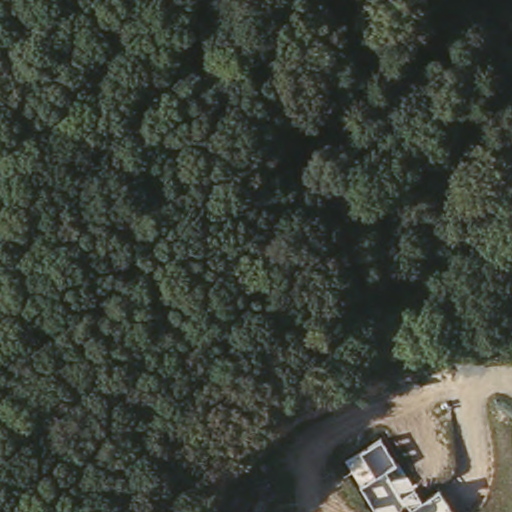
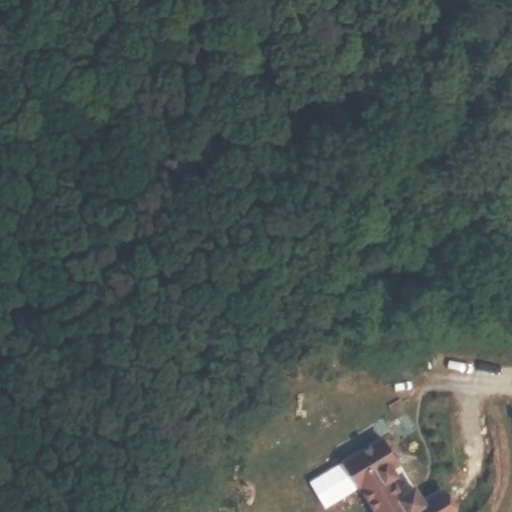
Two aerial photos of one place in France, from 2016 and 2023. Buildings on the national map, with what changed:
unchanged [(453,512),(375,512),(359,485),(375,475),(360,450),(381,437),(396,464),(386,470),(401,495),(413,487),(421,500),(440,488),(453,512)]

